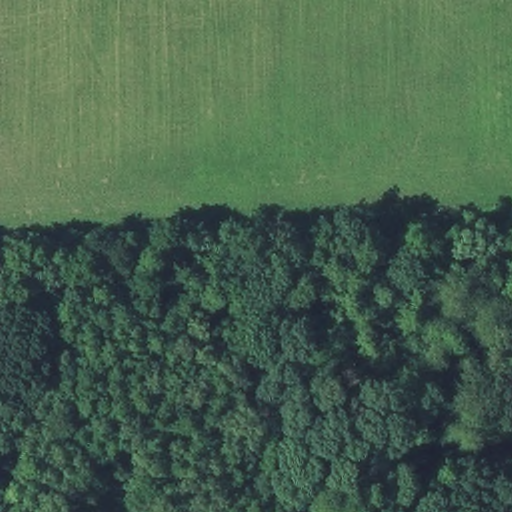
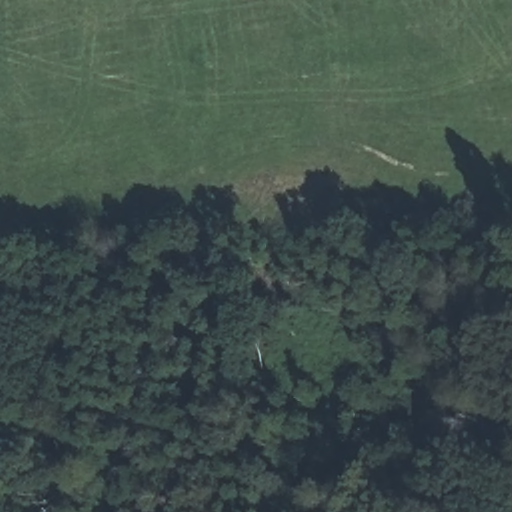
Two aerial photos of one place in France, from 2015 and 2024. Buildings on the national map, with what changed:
[]

